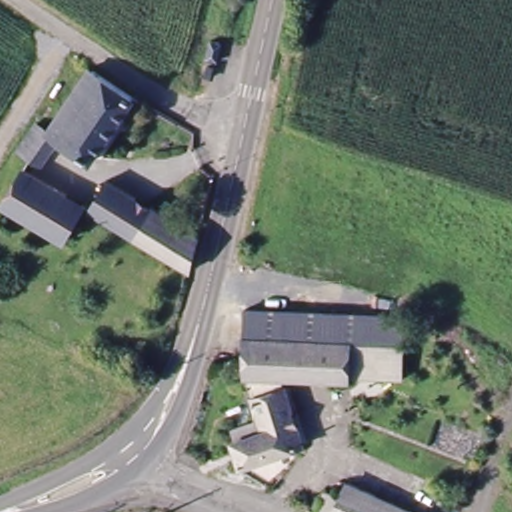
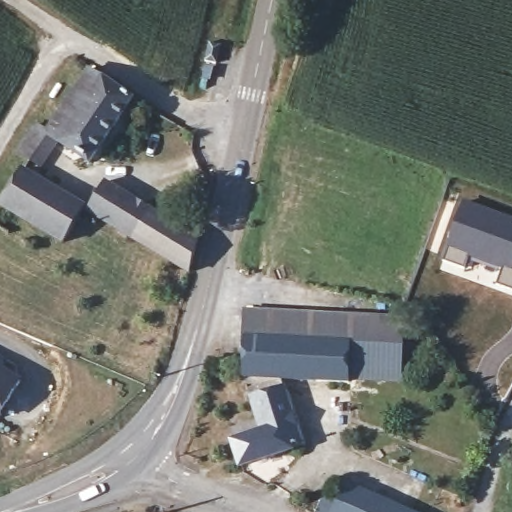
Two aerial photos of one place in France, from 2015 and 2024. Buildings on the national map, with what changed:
unchanged [(205,50),(219,52),(215,70),(201,67),(205,50)]
unchanged [(131,99),(89,163),(53,140),(40,160),(23,149),(40,122),(50,127),(90,70),(131,99)]
unchanged [(167,138),(142,125),(149,109),(175,124),(167,138)]
unchanged [(19,171),(25,174),(84,208),(99,184),(192,239),(183,271),(77,209),(59,240),(43,231),(31,249),(0,229),(0,206),(19,171)]
new [(512,216),(512,289),(497,283),(502,269),(468,257),(464,267),(443,260),(463,197),(512,216)]
unchanged [(244,308),(403,315),(399,377),(349,375),(348,383),(241,380),(244,308)]
new [(18,384),(0,415),(0,373),(18,384)]
unchanged [(262,428),(250,397),(287,387),(308,444),(250,463),(237,436),(262,428)]
unchanged [(306,512),(317,490),(333,498),(341,481),(406,512),(306,512)]

